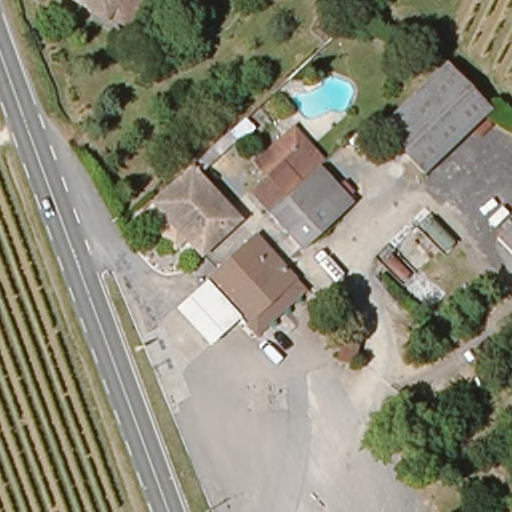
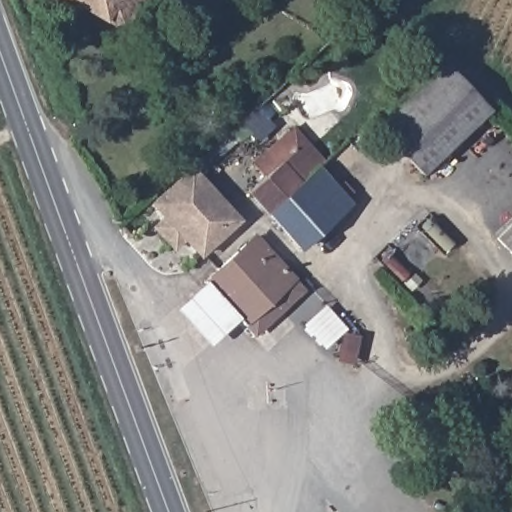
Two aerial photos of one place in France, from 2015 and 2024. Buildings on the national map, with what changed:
unchanged [(120,31),(67,0),(135,0),(120,31)]
unchanged [(447,61),(491,104),(488,106),(420,168),(378,122),(447,61)]
unchanged [(256,159),(292,126),(315,149),(307,157),(295,147),(268,172),(256,159)]
unchanged [(295,147),(307,157),(315,149),(325,158),(316,167),(267,214),(250,193),(268,172),(295,147)]
unchanged [(194,257),(147,204),(193,160),(244,223),(194,257)]
unchanged [(316,167),(349,200),(299,249),(267,214),(316,167)]
unchanged [(512,226),(512,253),(498,238),(512,226)]
unchanged [(247,317),(212,275),(258,235),(293,274),(247,317)]
unchanged [(305,286),(260,329),(247,317),(293,274),(305,286)]
unchanged [(233,329),(228,323),(199,289),(212,275),(247,317),(233,329)]
unchanged [(199,289),(228,323),(209,342),(178,308),(199,289)]

